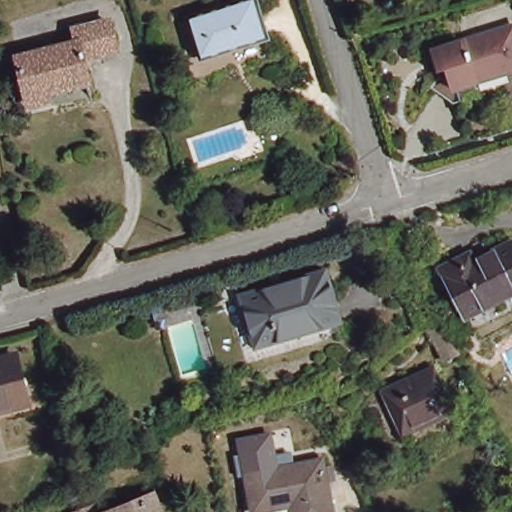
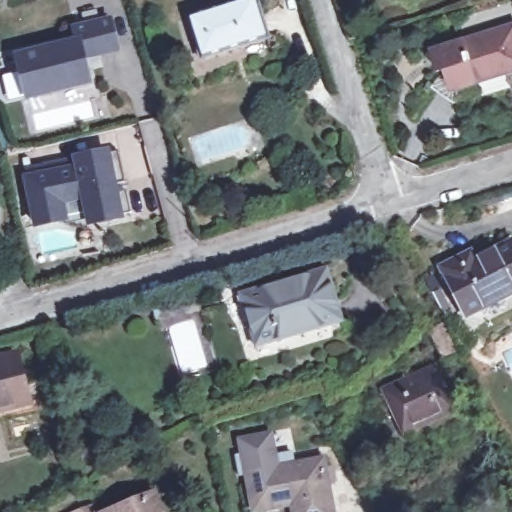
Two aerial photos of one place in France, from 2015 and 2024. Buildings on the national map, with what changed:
unchanged [(246,0),(254,0),(267,39),(201,59),(188,18),(246,0)]
unchanged [(80,19),(113,11),(120,40),(86,48),(92,74),(33,88),(22,46),(82,31),(80,19)]
unchanged [(512,65),(455,83),(450,95),(432,83),(447,62),(441,42),(512,20),(512,65)]
new [(42,170),(41,165),(71,160),(70,156),(109,149),(115,150),(122,182),(119,183),(121,192),(124,191),(128,213),(125,215),(126,220),(87,228),(81,201),(65,204),(69,222),(33,230),(23,176),(42,170)]
unchanged [(442,269),(462,259),(474,253),(478,261),(512,244),(512,294),(466,317),(442,269)]
unchanged [(324,269),(340,322),(255,348),(240,295),(324,269)]
unchanged [(431,332),(446,325),(460,353),(445,361),(431,332)]
unchanged [(14,356),(27,404),(0,411),(0,359),(14,356)]
unchanged [(430,362),(451,407),(398,431),(377,386),(430,362)]
new [(280,464),(250,469),(243,472),(237,438),(272,431),(280,464)]
unchanged [(338,512),(299,512),(296,499),(258,506),(250,469),(326,455),(338,512)]
unchanged [(161,512),(113,512),(154,495),(161,512)]
unchanged [(99,512),(80,512),(96,506),(99,512)]

